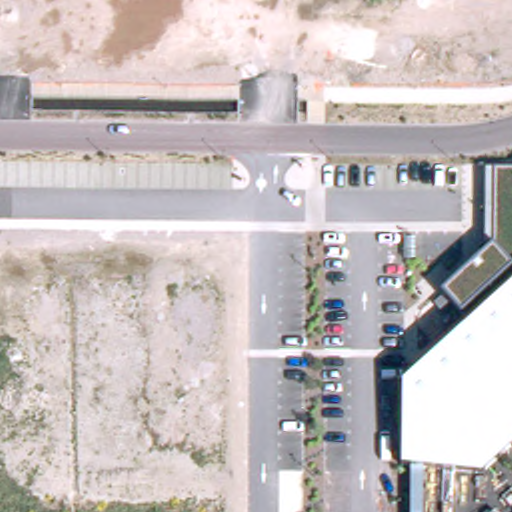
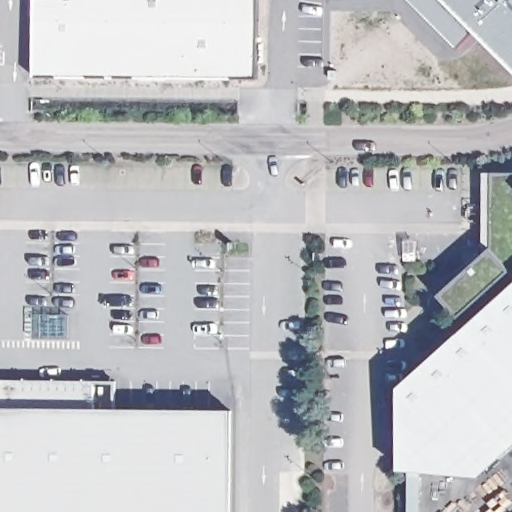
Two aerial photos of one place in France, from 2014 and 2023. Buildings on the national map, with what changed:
new [(258,77),(34,77),(34,0),(257,0),(258,77)]
new [(512,70),(443,0),(512,0),(512,70)]
unchanged [(468,330),(440,293),(482,257),(482,176),(512,178),(512,454),(485,479),(400,471),(400,392),(468,330)]
new [(117,382),(118,407),(233,408),(232,512),(0,512),(0,377),(117,382)]
new [(421,512),(410,512),(410,473),(420,473),(421,512)]

